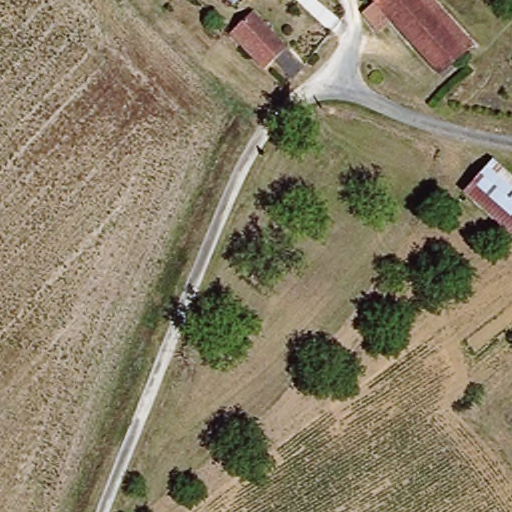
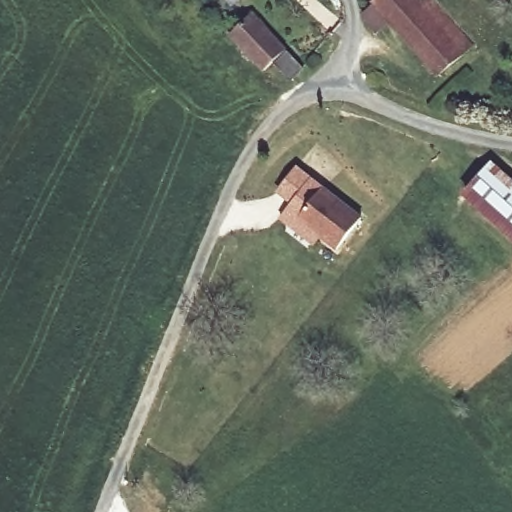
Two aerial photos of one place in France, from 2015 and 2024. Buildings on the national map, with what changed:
unchanged [(229,0),(237,0),(233,4),(229,0)]
unchanged [(465,50),(442,73),(397,28),(388,37),(383,32),(370,44),(355,24),(361,9),(372,0),(415,0),(420,5),(465,50)]
unchanged [(308,76),(297,88),(278,69),(269,78),(235,43),(256,22),(308,76)]
unchanged [(512,179),(512,234),(466,192),(493,162),(512,179)]
new [(292,201),(278,191),(297,167),(310,177),(362,217),(337,249),(321,236),(315,243),(280,216),(291,203),(292,201)]

